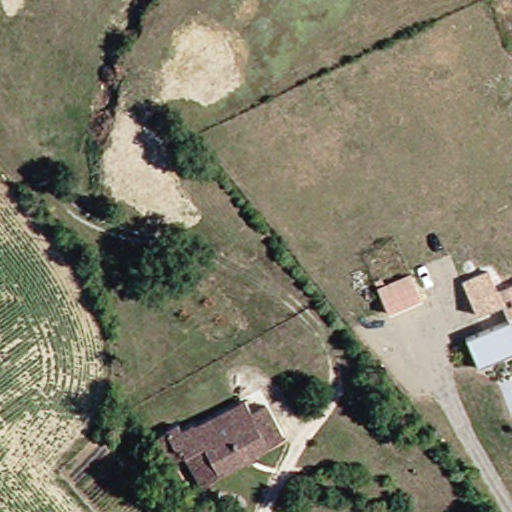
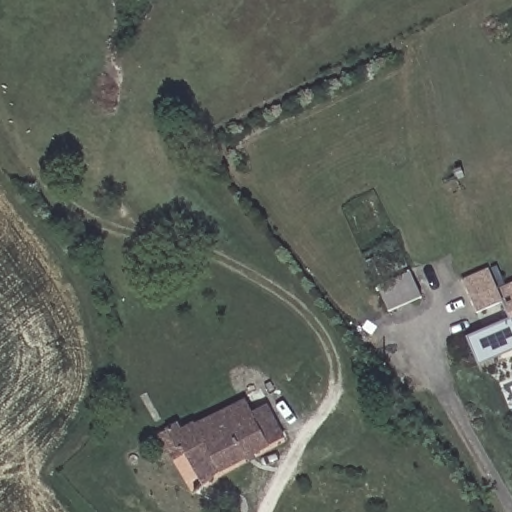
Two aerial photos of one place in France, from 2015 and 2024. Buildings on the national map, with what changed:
unchanged [(494,301),(485,267),(511,260),(512,266),(512,296),(494,301)]
unchanged [(378,282),(412,273),(420,299),(386,309),(378,282)]
unchanged [(487,354),(486,348),(479,323),(509,315),(512,315),(512,348),(487,354)]
unchanged [(256,415),(275,408),(289,437),(219,474),(211,490),(190,453),(194,451),(189,440),(176,447),(167,430),(245,395),(256,415)]

